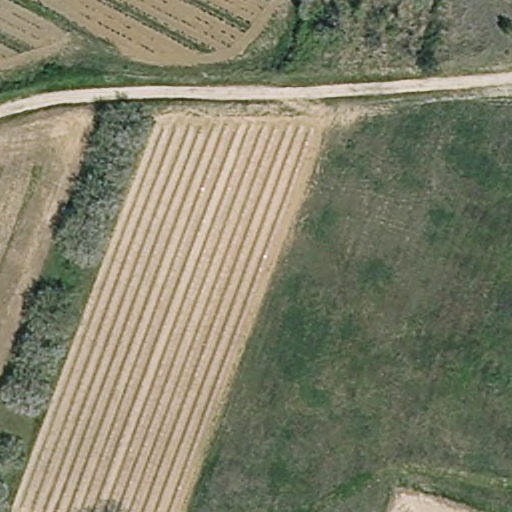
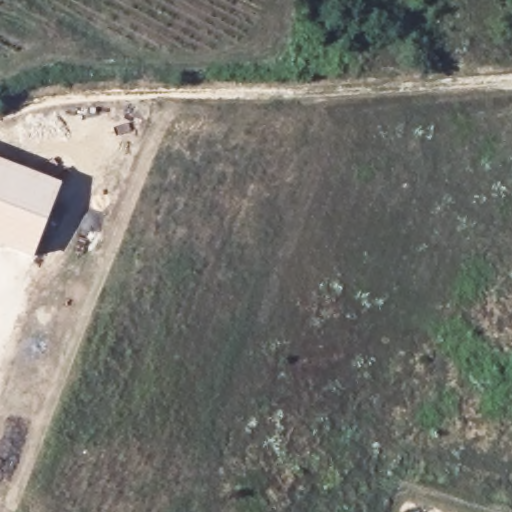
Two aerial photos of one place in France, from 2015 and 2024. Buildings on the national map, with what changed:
new [(64,190),(37,254),(0,239),(0,163),(64,190)]

